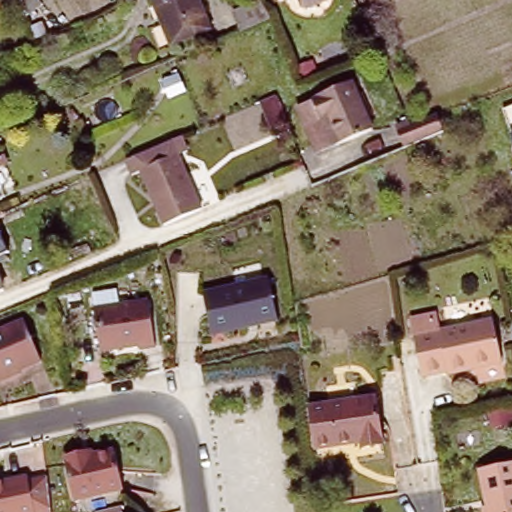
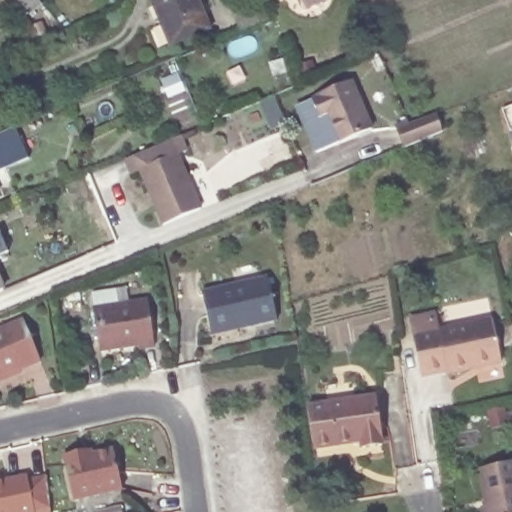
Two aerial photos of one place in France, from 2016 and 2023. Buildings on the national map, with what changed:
unchanged [(175,44),(157,0),(202,0),(213,27),(175,44)]
unchanged [(241,29),(233,10),(257,0),(262,0),(270,17),(241,29)]
unchanged [(302,103),(316,97),(323,94),(322,91),(357,78),(377,126),(342,140),(321,148),(302,103)]
unchanged [(272,129),(260,101),(276,94),(287,123),(272,129)]
unchanged [(388,127),(407,119),(409,123),(430,116),(435,131),(396,147),(390,131),(388,127)]
unchanged [(502,127),(512,123),(512,152),(502,127)]
new [(27,157),(0,169),(0,132),(13,126),(27,157)]
unchanged [(154,192),(144,167),(135,170),(130,154),(185,131),(192,147),(182,151),(205,205),(171,218),(166,220),(154,192)]
new [(0,211),(0,205),(2,210),(0,211)]
unchanged [(215,331),(205,288),(267,273),(278,316),(215,331)]
unchanged [(0,295),(0,287),(3,294),(0,295)]
unchanged [(138,343),(137,341),(103,345),(97,305),(150,297),(155,341),(138,343)]
unchanged [(498,363),(443,373),(443,371),(419,376),(412,337),(408,316),(428,313),(434,312),(437,330),(490,320),(498,363)]
unchanged [(0,333),(22,324),(38,363),(0,378),(0,333)]
unchanged [(365,449),(365,443),(317,450),(315,437),(311,408),(378,398),(384,447),(365,449)]
unchanged [(75,495),(65,455),(113,444),(122,485),(75,495)]
unchanged [(485,504),(478,468),(512,461),(512,512),(481,512),(480,505),(485,504)]
unchanged [(22,477),(41,473),(45,506),(46,512),(0,512),(0,477),(22,472),(22,477)]

